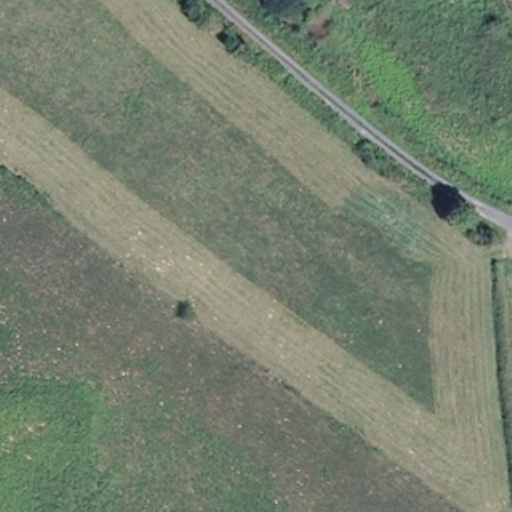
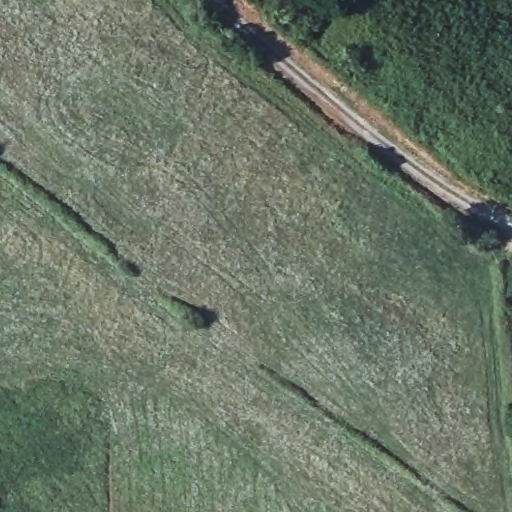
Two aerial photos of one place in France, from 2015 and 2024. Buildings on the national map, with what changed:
unchanged [(302,0),(335,29),(316,48),(269,9),(277,0),(302,0)]

